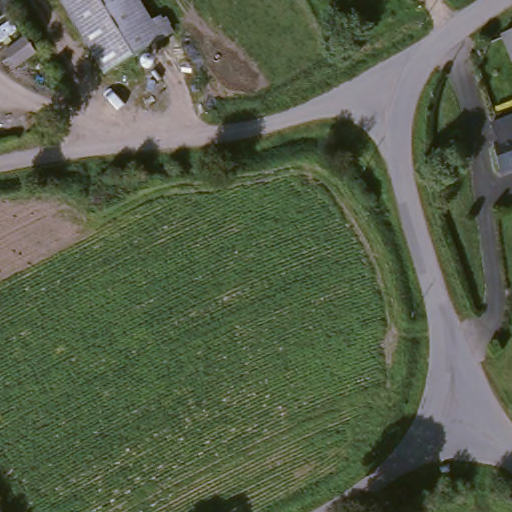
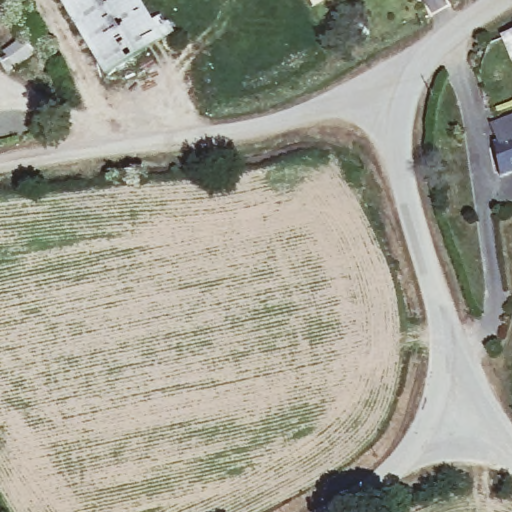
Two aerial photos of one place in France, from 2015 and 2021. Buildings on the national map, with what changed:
unchanged [(0,20),(0,0),(3,0),(12,13),(0,20)]
unchanged [(149,31),(158,25),(168,41),(158,47),(159,48),(102,82),(52,0),(131,0),(149,31)]
unchanged [(502,35),(512,31),(512,61),(502,35)]
unchanged [(28,61),(8,76),(0,65),(0,60),(18,47),(28,61)]
unchanged [(488,149),(494,147),(486,129),(512,119),(512,174),(495,181),(488,149)]

